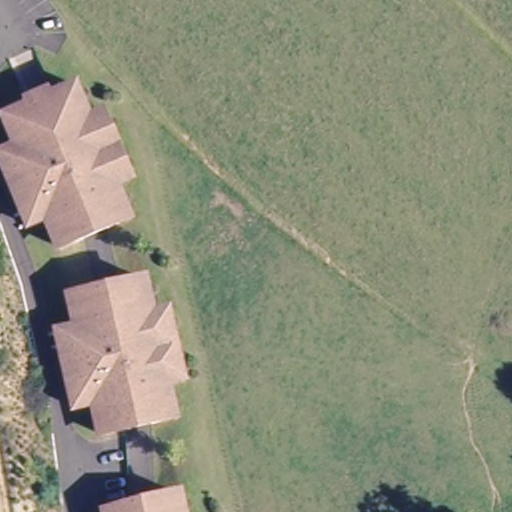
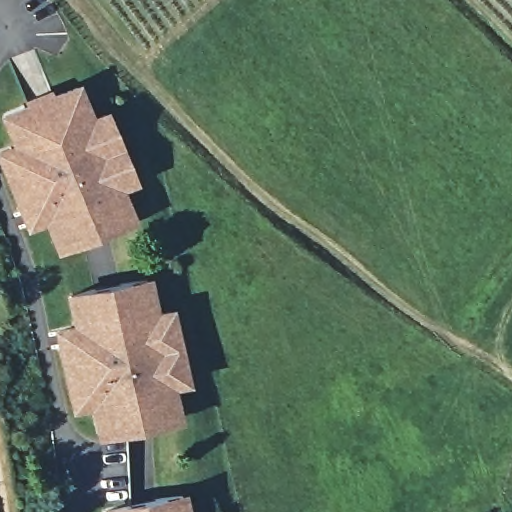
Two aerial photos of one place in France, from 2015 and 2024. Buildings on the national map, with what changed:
unchanged [(24,218),(0,160),(0,159),(17,151),(5,121),(62,97),(77,91),(88,119),(91,125),(105,119),(118,151),(132,184),(117,190),(119,194),(131,223),(117,229),(59,253),(47,223),(29,230),(24,218)]
unchanged [(111,435),(104,403),(86,407),(72,345),(69,332),(87,328),(80,296),(141,282),(156,279),(162,308),(164,314),(179,310),(187,345),(195,380),(179,383),(180,387),(187,418),(172,421),(111,435)]
unchanged [(162,498),(176,495),(180,512),(100,512),(100,511),(162,498)]

